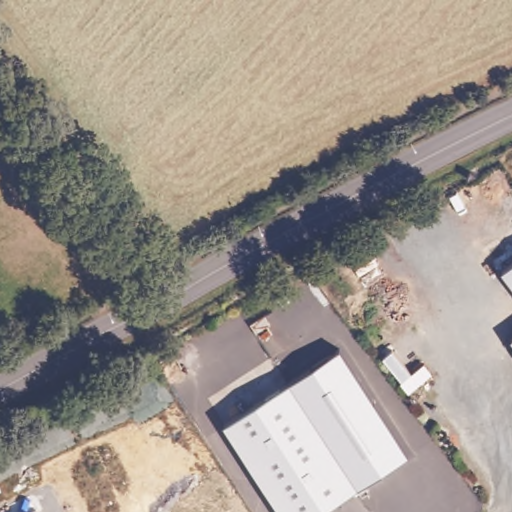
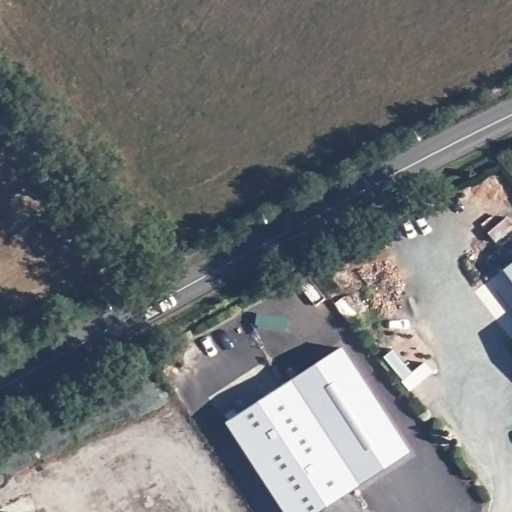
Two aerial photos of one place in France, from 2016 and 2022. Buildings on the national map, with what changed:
unchanged [(501,267),(512,259),(512,282),(501,267)]
unchanged [(510,337),(512,335),(512,340),(510,337)]
unchanged [(410,452),(317,512),(280,512),(223,423),(341,347),(410,452)]

